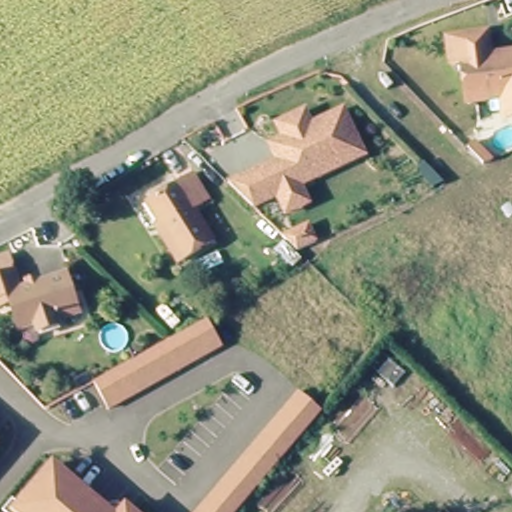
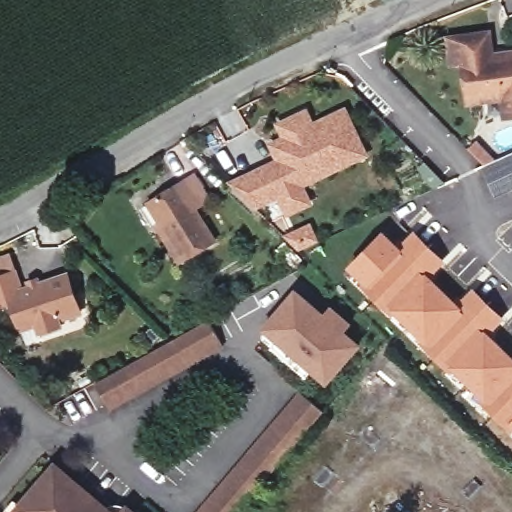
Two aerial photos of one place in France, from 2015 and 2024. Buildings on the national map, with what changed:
unchanged [(462,63),(450,65),(447,39),(487,34),(490,57),(512,54),(512,97),(466,103),(462,63)]
unchanged [(289,215),(282,197),(256,207),(242,194),(232,183),(281,163),(275,146),(290,140),(284,126),(313,114),(318,127),(351,114),(370,160),(305,187),(312,206),(289,215)]
new [(496,160),(512,152),(512,190),(495,198),(479,163),(467,150),(478,140),(496,160)]
unchanged [(213,201),(197,211),(216,241),(181,264),(157,227),(164,223),(151,203),(196,174),(213,201)]
unchanged [(321,244),(302,252),(288,239),(313,227),(321,244)]
new [(399,244),(414,230),(446,262),(432,277),(457,302),(473,288),(504,318),(490,334),(512,355),(512,429),(508,425),(506,427),(493,415),(468,387),(434,357),(402,322),(369,294),(347,267),(383,230),(399,244)]
unchanged [(82,306),(62,313),(64,317),(41,325),(40,321),(22,327),(12,296),(0,300),(0,269),(17,263),(24,281),(32,278),(30,272),(40,268),(42,275),(68,266),(82,306)]
new [(261,323),(294,287),(309,300),(321,312),(328,303),(348,322),(341,330),(356,342),(323,379),(309,367),(302,374),(268,343),(275,336),(261,323)]
unchanged [(217,333),(222,343),(223,344),(110,409),(95,383),(176,336),(208,318),(217,333)]
unchanged [(240,512),(196,512),(299,392),(323,413),(240,512)]
unchanged [(17,498),(24,504),(59,464),(115,512),(13,512),(9,508),(17,498)]
unchanged [(136,512),(127,512),(131,508),(136,512)]

